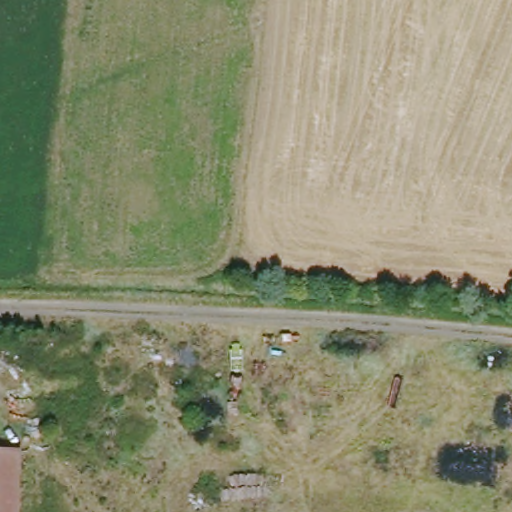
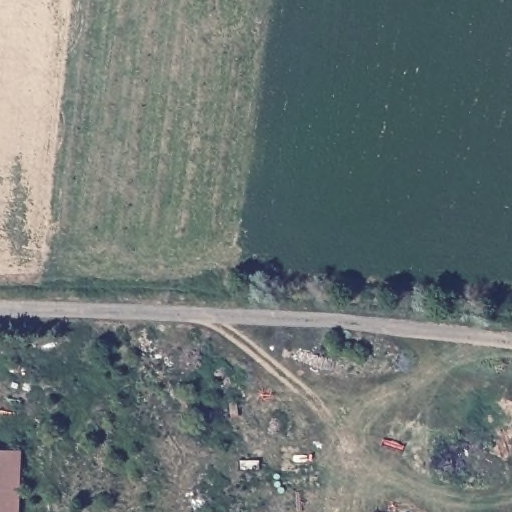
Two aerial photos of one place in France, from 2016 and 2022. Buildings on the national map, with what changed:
unchanged [(12,512),(0,512),(0,448),(13,448),(12,512)]

